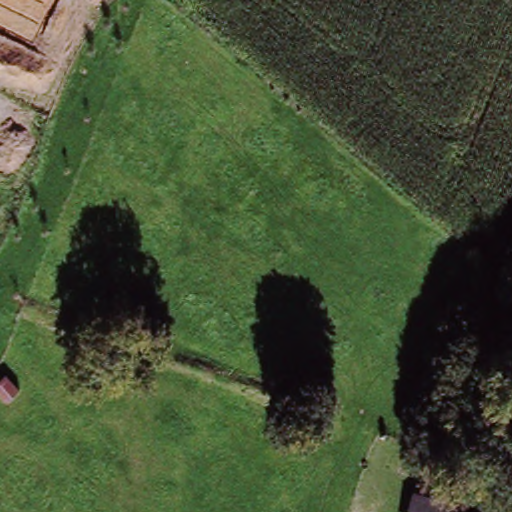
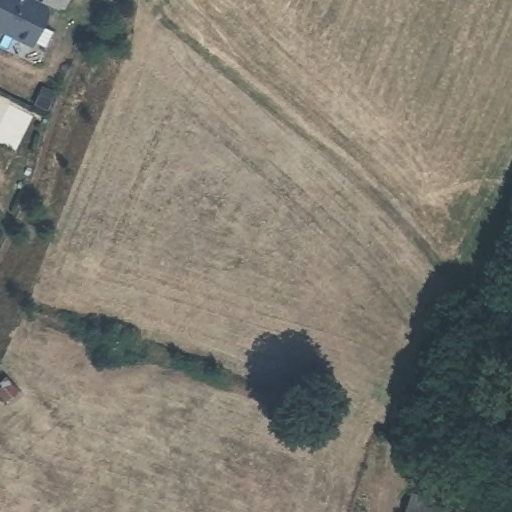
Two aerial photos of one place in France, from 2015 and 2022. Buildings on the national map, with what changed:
new [(36,0),(45,4),(48,14),(31,46),(0,31),(0,0),(36,0)]
unchanged [(467,512),(413,512),(419,494),(468,510),(467,512)]
unchanged [(468,510),(474,512),(467,512),(468,510)]

